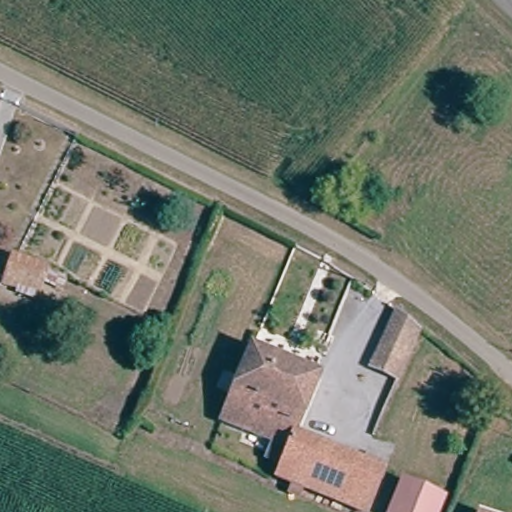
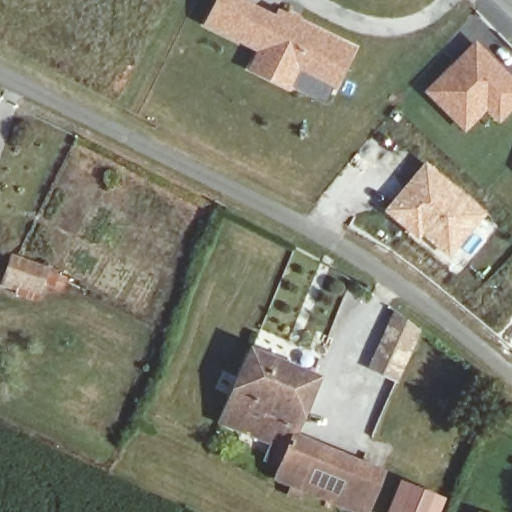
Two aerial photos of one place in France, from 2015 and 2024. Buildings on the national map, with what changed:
new [(299,72),(290,90),(247,68),(256,52),(204,24),(217,0),(246,0),(275,15),(279,8),(289,12),(290,10),(303,17),(301,21),(358,47),(336,92),(299,72)]
new [(512,112),(500,124),(487,111),(465,132),(425,91),(475,41),(512,75),(512,112)]
new [(488,212),(450,257),(422,236),(418,240),(385,211),(426,162),(488,212)]
new [(1,282),(11,254),(51,267),(50,271),(69,277),(63,293),(45,287),(39,303),(14,295),(16,287),(1,282)]
unchanged [(397,378),(370,367),(395,308),(419,327),(397,378)]
unchanged [(298,438),(367,467),(350,510),(278,481),(284,467),(270,462),(278,445),(226,424),(256,353),(321,380),(298,438)]
unchanged [(450,497),(444,512),(397,512),(410,482),(450,497)]

